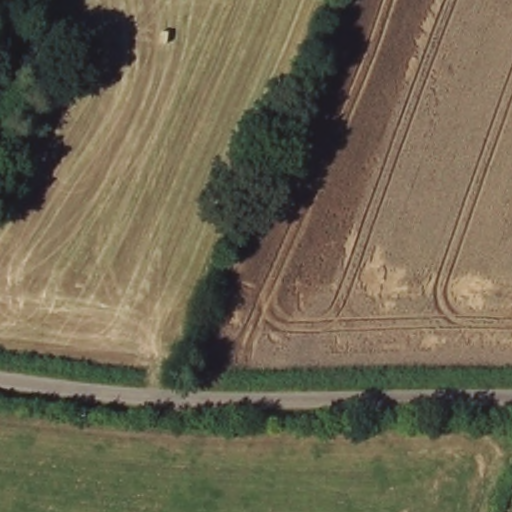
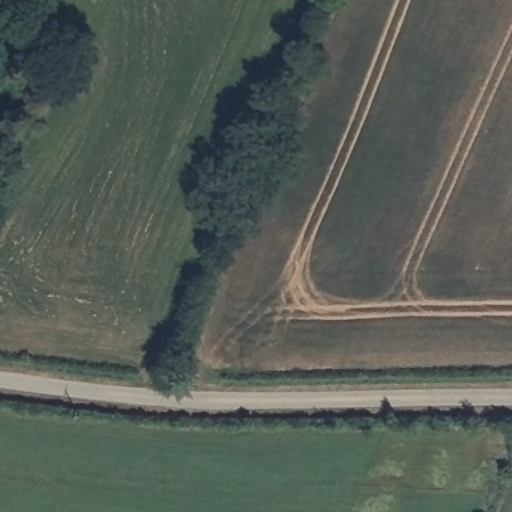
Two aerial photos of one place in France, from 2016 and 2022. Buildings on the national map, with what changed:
[]

